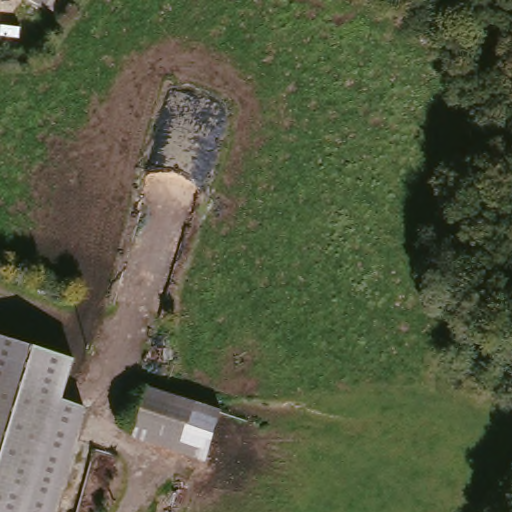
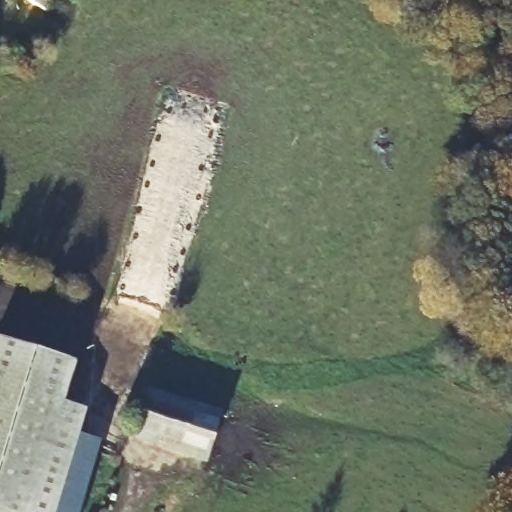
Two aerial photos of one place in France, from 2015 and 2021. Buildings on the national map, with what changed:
unchanged [(68,401),(89,406),(57,512),(0,512),(0,336),(80,360),(68,401)]
unchanged [(222,411),(204,460),(131,437),(148,388),(222,411)]

